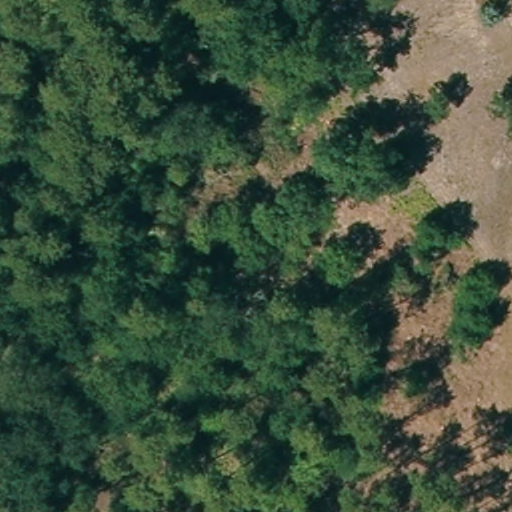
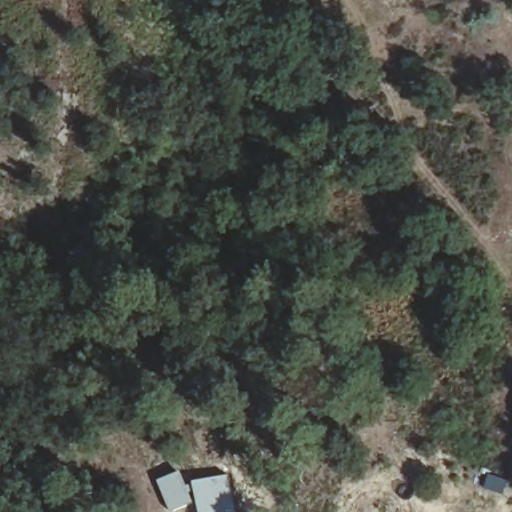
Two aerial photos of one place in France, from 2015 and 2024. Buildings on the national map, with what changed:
new [(169,511),(162,477),(184,473),(186,484),(229,476),(236,512),(198,512),(196,506),(169,511)]

